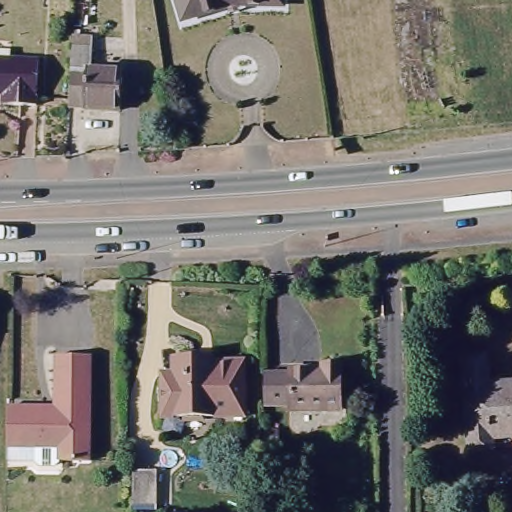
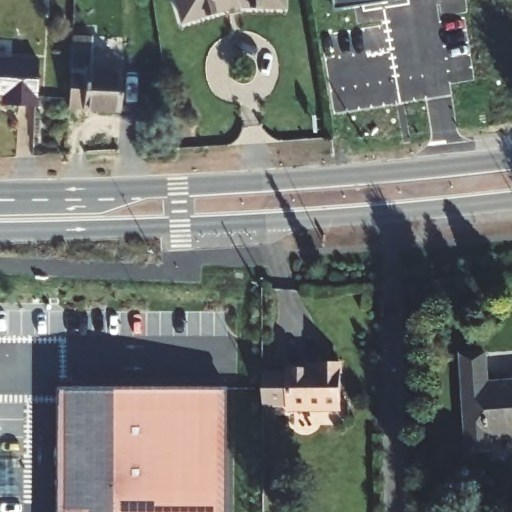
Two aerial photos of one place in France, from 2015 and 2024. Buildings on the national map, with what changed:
unchanged [(240,5),(190,22),(182,0),(285,0),(286,4),(240,5)]
unchanged [(74,52),(75,35),(94,36),(93,69),(126,70),(123,109),(71,108),(73,68),(74,52)]
unchanged [(0,94),(0,58),(39,60),(37,105),(17,104),(7,104),(7,94),(0,94)]
unchanged [(494,449),(471,451),(466,359),(465,357),(487,355),(488,384),(512,382),(512,437),(493,438),(494,449)]
demolished [(164,373),(175,373),(174,356),(215,356),(216,361),(244,361),(245,414),(165,415),(164,373)]
demolished [(40,468),(36,464),(8,463),(8,449),(9,411),(58,412),(59,359),(93,359),(93,464),(64,464),(60,468),(40,468)]
unchanged [(305,368),(335,369),(335,362),(357,362),(356,408),(304,407),(305,401),(275,401),(274,371),(306,372),(305,368)]
new [(241,512),(75,512),(73,384),(240,384),(241,512)]
demolished [(151,503),(129,503),(128,468),(150,468),(151,503)]

